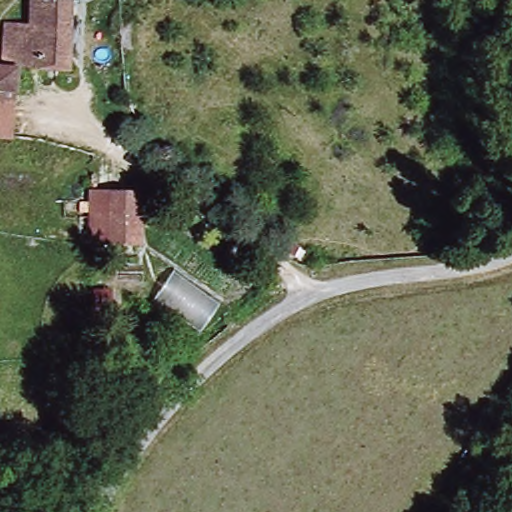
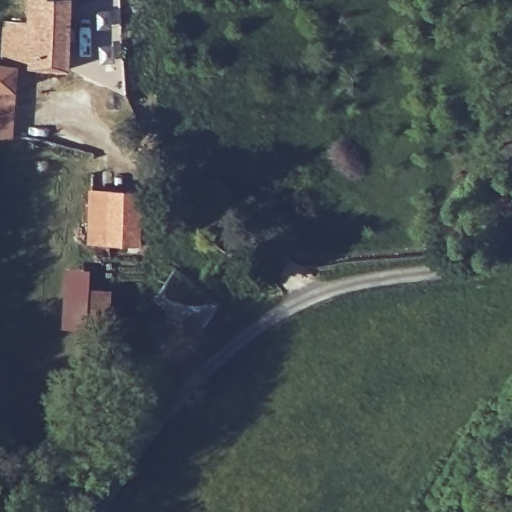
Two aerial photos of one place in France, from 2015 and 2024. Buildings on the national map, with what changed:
unchanged [(19,65),(20,86),(0,86),(0,59),(3,59),(6,20),(28,19),(29,0),(73,0),(70,66),(19,65)]
unchanged [(100,191),(132,191),(131,239),(99,237),(100,191)]
new [(70,320),(70,328),(64,328),(65,267),(91,268),(91,290),(110,291),(110,300),(102,299),(101,325),(90,325),(70,320)]

